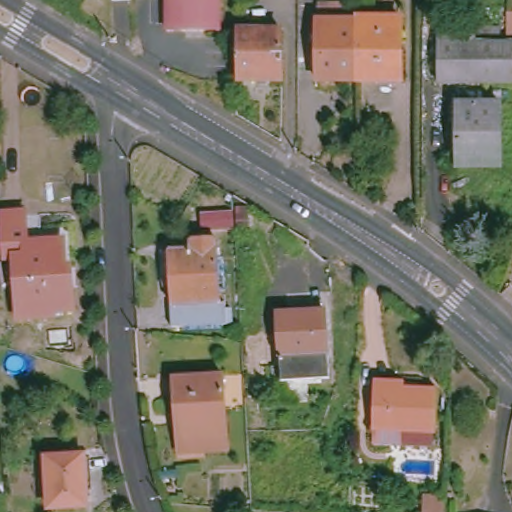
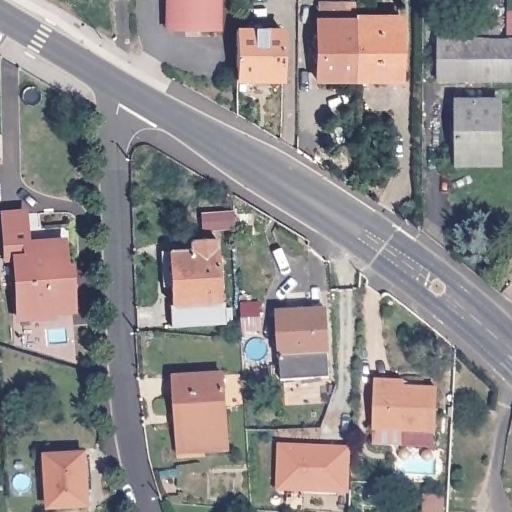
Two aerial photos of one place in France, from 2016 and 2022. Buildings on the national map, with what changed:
unchanged [(163,29),(163,21),(163,0),(215,0),(215,22),(215,29),(163,29)]
unchanged [(352,82),(315,82),(314,21),(316,21),(316,5),(352,4),(352,19),(352,81),(352,82)]
unchanged [(502,10),(512,11),(512,83),(436,84),(435,44),(493,43),(503,43),(502,10)]
unchanged [(493,18),(493,43),(435,44),(434,19),(493,18)]
unchanged [(352,19),(397,19),(397,81),(352,81),(352,19)]
unchanged [(279,26),(278,76),(233,76),(233,26),(279,26)]
unchanged [(497,104),(496,165),(457,164),(457,103),(497,104)]
unchanged [(28,246),(45,246),(48,291),(53,290),(55,317),(20,318),(16,253),(7,253),(4,210),(26,209),(28,246)]
unchanged [(211,301),(214,301),(215,324),(163,326),(162,303),(165,303),(162,250),(169,250),(168,240),(208,239),(211,301)]
unchanged [(273,356),(271,311),(318,308),(321,353),(273,356)]
unchanged [(321,353),(323,377),(275,379),(273,356),(321,353)]
unchanged [(222,379),(226,449),(182,451),(179,402),(172,402),(172,381),(222,379)]
unchanged [(411,433),(370,431),(371,388),(434,390),(433,433),(411,433)]
new [(350,446),(349,493),(277,491),(278,444),(350,446)]
unchanged [(48,509),(44,459),(82,456),(86,507),(48,509)]

